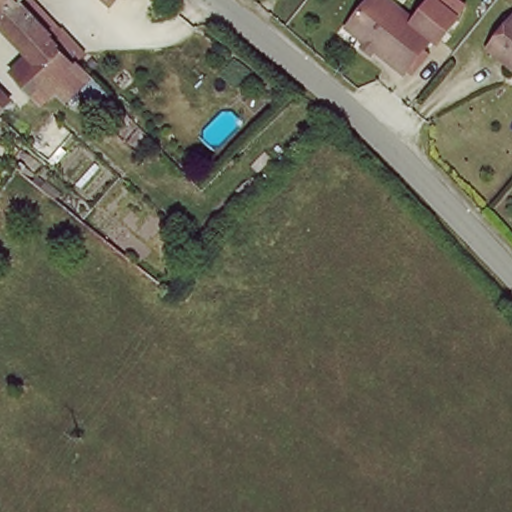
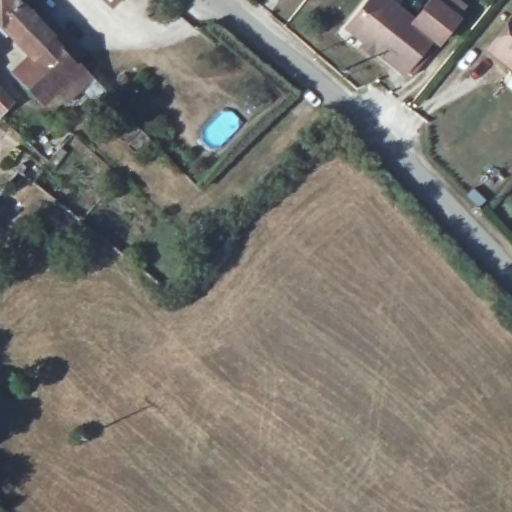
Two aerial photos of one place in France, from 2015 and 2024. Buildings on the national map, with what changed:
unchanged [(16,75),(36,55),(3,21),(0,23),(0,0),(15,0),(19,4),(24,9),(62,50),(66,55),(76,43),(98,66),(88,77),(101,90),(103,93),(96,99),(90,94),(60,124),(37,99),(16,75)]
unchanged [(23,0),(19,4),(15,0),(23,0)]
unchanged [(406,71),(348,28),(369,0),(387,0),(434,35),(406,71)]
unchanged [(512,29),(512,66),(494,51),(509,34),(512,29)]
unchanged [(1,119),(0,118),(0,89),(15,104),(1,119)]

